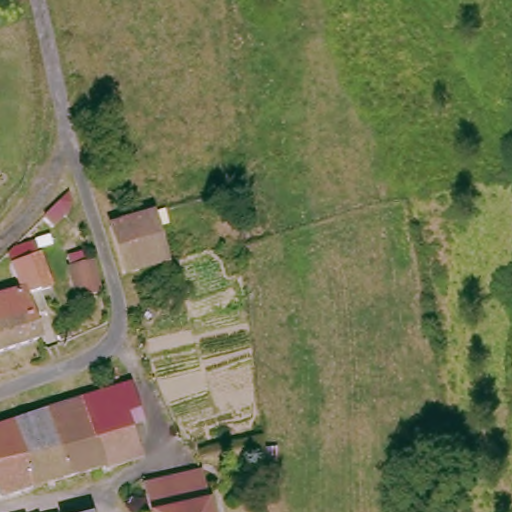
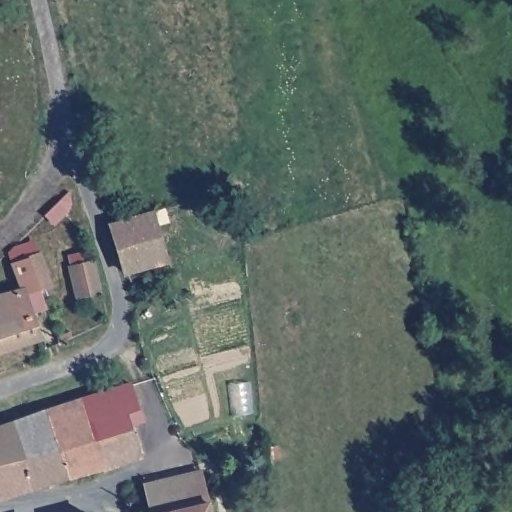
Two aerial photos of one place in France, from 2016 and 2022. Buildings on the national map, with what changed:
unchanged [(112,228),(145,219),(157,215),(171,259),(127,274),(112,228)]
unchanged [(65,249),(85,243),(95,272),(73,278),(65,249)]
unchanged [(23,289),(15,266),(31,260),(42,291),(25,296),(31,314),(39,338),(0,351),(0,297),(5,295),(23,289)]
unchanged [(85,398),(135,382),(148,417),(136,422),(147,452),(110,465),(107,461),(85,398)]
unchanged [(52,410),(85,398),(107,461),(74,472),(52,410)]
unchanged [(25,418),(52,410),(74,472),(47,481),(25,418)]
unchanged [(0,484),(0,427),(25,418),(47,481),(5,496),(0,484)]
unchanged [(184,480),(200,476),(208,506),(209,512),(148,512),(145,502),(144,491),(184,480)]

